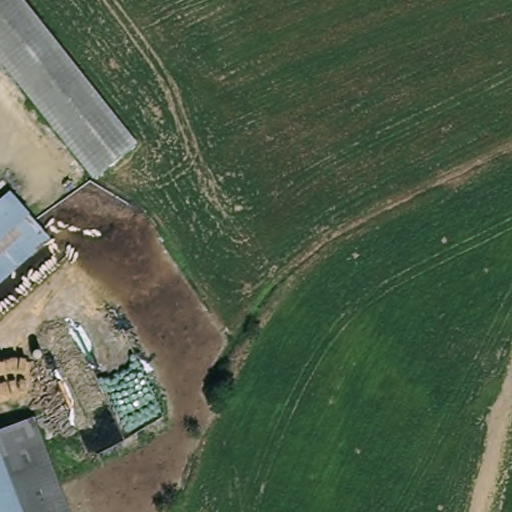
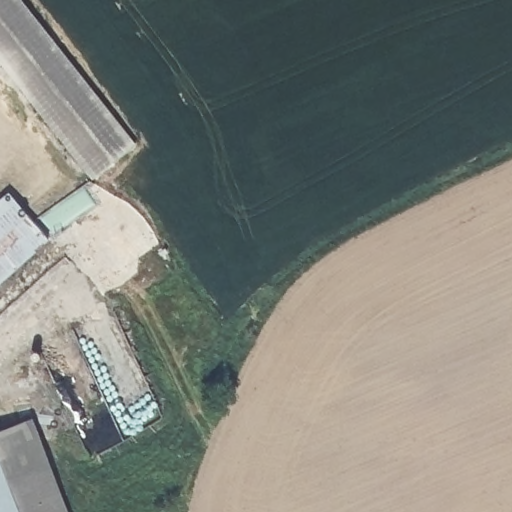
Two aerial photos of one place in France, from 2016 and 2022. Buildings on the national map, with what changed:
unchanged [(102,172),(0,43),(0,0),(24,0),(136,143),(102,172)]
unchanged [(0,200),(11,190),(54,237),(0,284),(0,200)]
unchanged [(0,444),(38,428),(77,512),(24,512),(0,461),(0,444)]
unchanged [(0,512),(0,461),(24,512),(0,512)]

